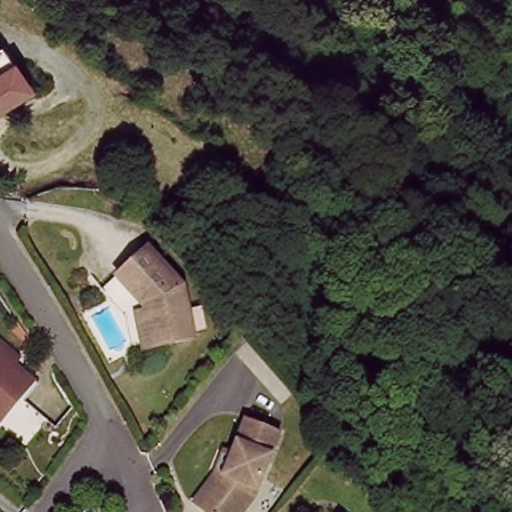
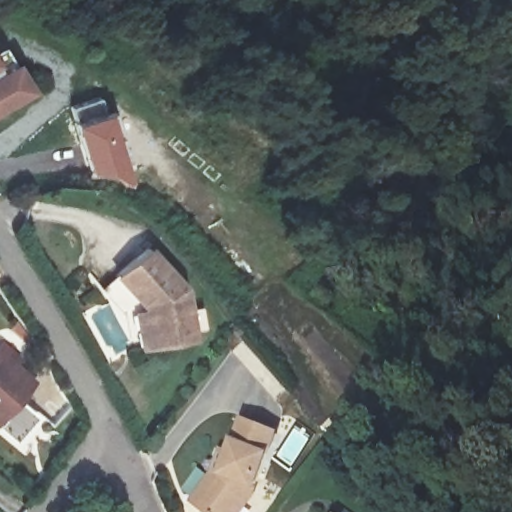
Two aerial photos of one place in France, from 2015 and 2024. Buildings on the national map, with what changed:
unchanged [(5,46),(20,68),(29,81),(37,93),(7,113),(0,117),(0,49),(5,46)]
new [(106,113),(131,183),(126,185),(109,174),(91,173),(75,124),(106,113)]
unchanged [(133,318),(144,315),(149,314),(144,300),(133,304),(116,272),(157,248),(182,294),(196,337),(153,349),(141,354),(133,318)]
unchanged [(0,421),(0,357),(0,348),(5,344),(25,368),(18,374),(32,391),(0,421)]
unchanged [(207,473),(221,449),(232,454),(249,417),(277,429),(250,492),(233,512),(211,512),(200,504),(190,496),(207,473)]

